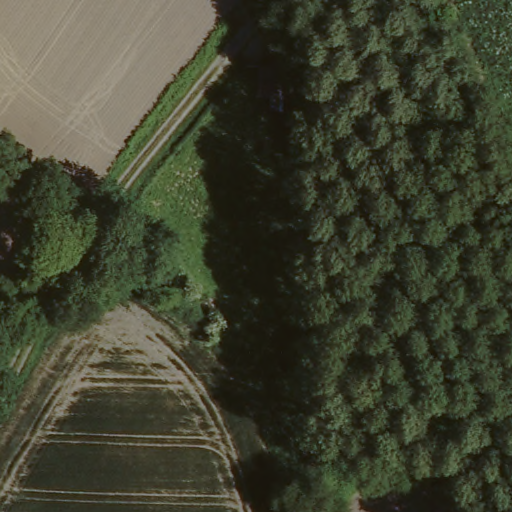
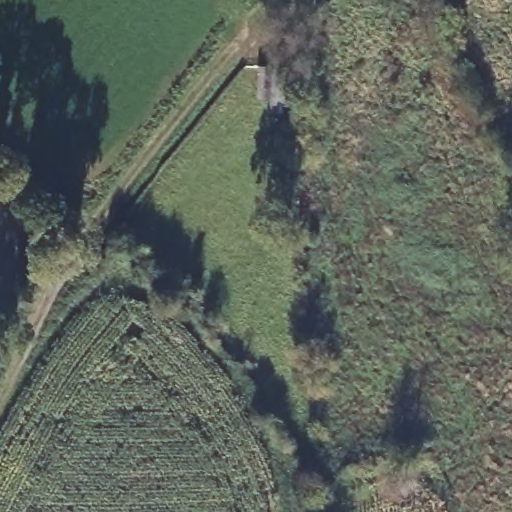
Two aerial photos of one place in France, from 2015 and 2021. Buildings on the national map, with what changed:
unchanged [(295,53),(291,104),(254,102),(255,67),(267,67),(271,48),(295,53)]

